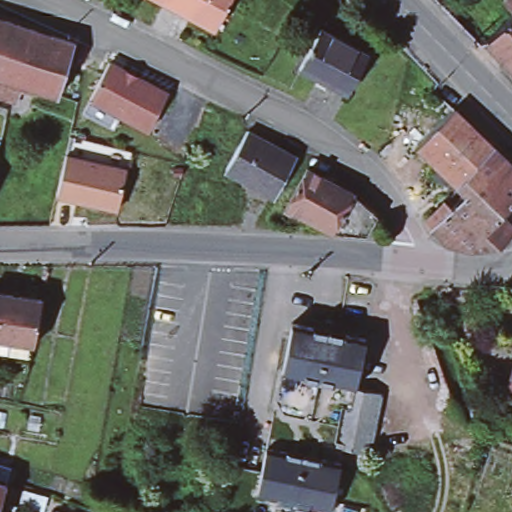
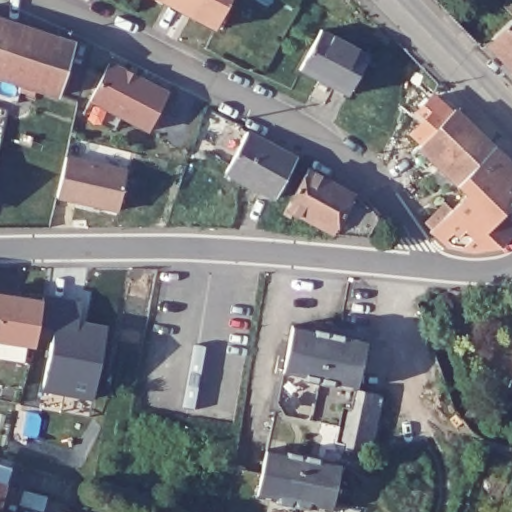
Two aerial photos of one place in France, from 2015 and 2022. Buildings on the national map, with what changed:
unchanged [(164,0),(184,0),(180,8),(164,0)]
unchanged [(184,0),(228,0),(214,26),(180,8),(184,0)]
unchanged [(504,8),(512,0),(512,16),(504,8)]
unchanged [(57,94),(35,87),(33,93),(25,90),(27,84),(22,83),(17,102),(0,96),(0,18),(75,41),(57,94)]
unchanged [(485,44),(512,18),(512,72),(485,44)]
unchanged [(299,66),(321,27),(369,52),(347,91),(299,66)]
unchanged [(169,91),(149,129),(90,98),(109,61),(169,91)]
unchanged [(502,211),(495,219),(467,192),(457,182),(440,165),(419,145),(454,107),(475,127),(512,162),(512,200),(502,211)]
unchanged [(248,130),(297,156),(275,196),(227,169),(248,130)]
unchanged [(127,171),(117,213),(56,197),(65,156),(127,171)]
unchanged [(307,168),(354,192),(333,231),(294,209),(290,215),(284,211),(287,206),(307,168)]
unchanged [(354,192),(378,215),(366,234),(333,231),(354,192)]
unchanged [(495,219),(502,211),(512,221),(512,231),(499,244),(475,248),(445,244),(430,228),(431,226),(425,220),(445,201),(452,208),(467,192),(495,219)]
unchanged [(35,340),(5,334),(4,341),(0,341),(0,288),(43,295),(35,340)]
new [(43,295),(82,301),(80,319),(108,324),(95,397),(44,388),(52,330),(37,328),(43,295)]
unchanged [(309,327),(310,324),(317,326),(333,329),(342,331),(342,334),(349,336),(361,338),(351,387),(370,391),(377,393),(365,454),(360,453),(357,467),(355,467),(335,462),(339,449),(337,448),(329,447),(330,440),(332,430),(341,385),(339,385),(323,381),(307,378),(287,374),(283,373),(277,372),(270,371),(274,354),(281,355),(288,323),(296,325),(309,327)]
unchanged [(512,375),(512,385),(509,384),(512,375)]
unchanged [(263,498),(252,496),(262,447),(267,448),(272,449),(292,453),(309,457),(324,460),(335,462),(325,511),(315,509),(306,507),(299,506),(282,503),(272,500),(263,498)]
unchanged [(10,488),(4,506),(2,505),(0,506),(0,508),(0,481),(10,484),(10,488)]

